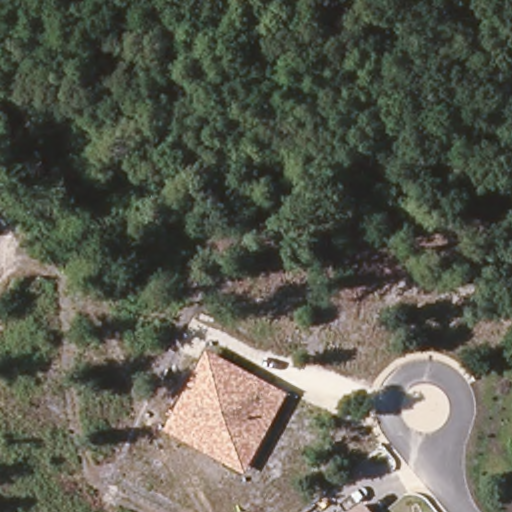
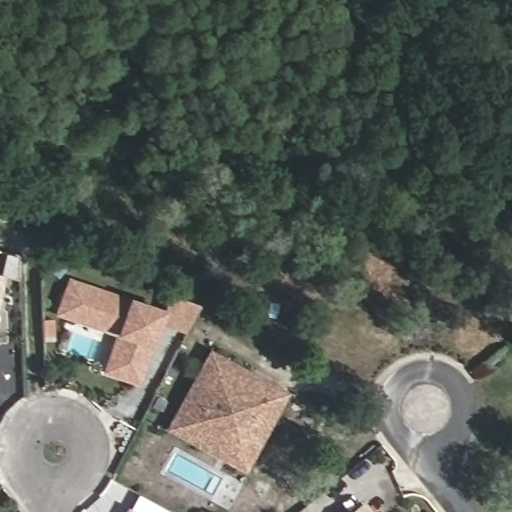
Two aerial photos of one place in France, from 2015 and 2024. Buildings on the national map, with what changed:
new [(2,274),(0,285),(0,274),(2,274)]
new [(160,308),(166,292),(197,303),(182,331),(155,322),(147,346),(134,386),(96,373),(109,334),(49,314),(62,275),(122,295),(160,308)]
unchanged [(246,476),(164,432),(210,348),(291,392),(246,476)]
unchanged [(363,500),(374,512),(349,512),(363,500)]
new [(128,507),(137,512),(125,512),(128,507)]

